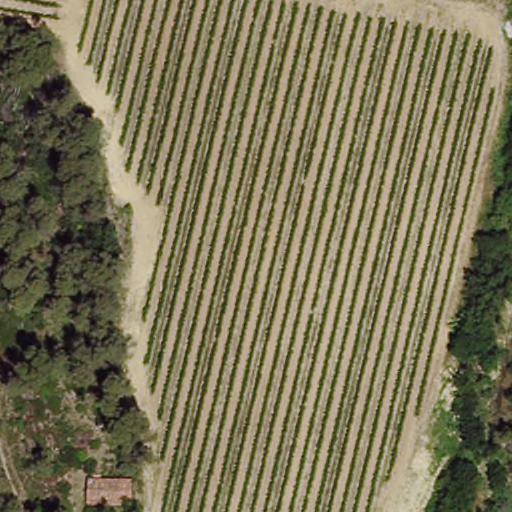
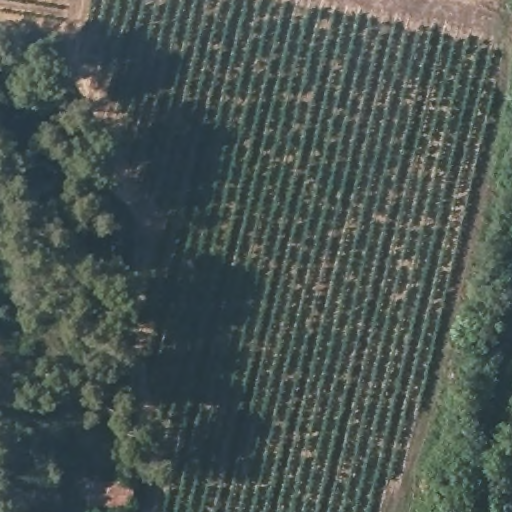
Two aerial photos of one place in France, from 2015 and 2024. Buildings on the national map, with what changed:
unchanged [(100,510),(92,509),(84,509),(86,484),(132,484),(130,511),(100,510)]

